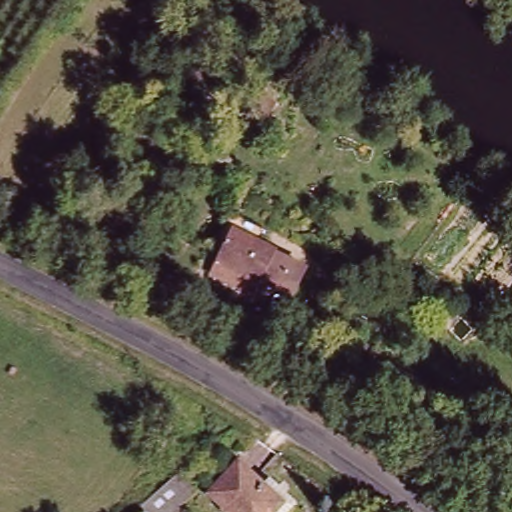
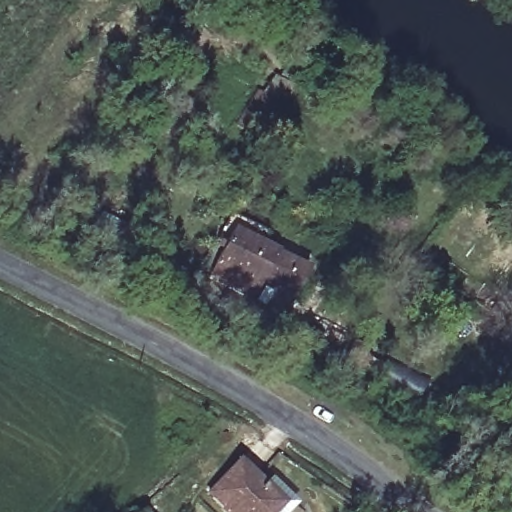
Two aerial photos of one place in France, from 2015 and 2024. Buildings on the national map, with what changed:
unchanged [(302,61),(270,113),(259,106),(292,54),(302,61)]
unchanged [(264,245),(313,272),(296,302),(264,287),(256,302),(211,281),(237,220),(272,235),(264,245)]
unchanged [(286,512),(232,512),(217,498),(245,468),(288,510),(286,512)]
unchanged [(194,500),(181,512),(143,512),(178,481),(194,500)]

